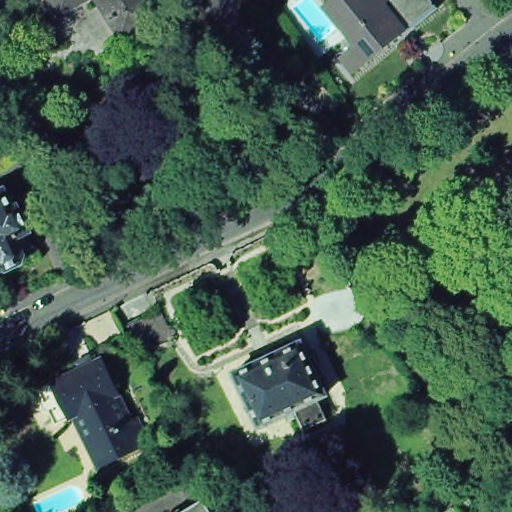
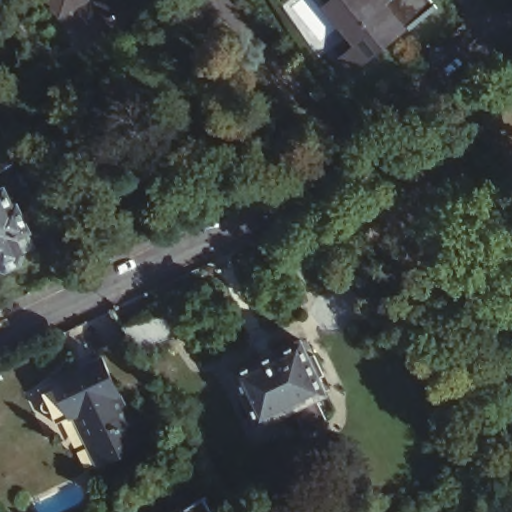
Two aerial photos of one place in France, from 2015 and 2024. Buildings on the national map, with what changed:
unchanged [(56,13),(48,0),(78,0),(56,13)]
unchanged [(106,18),(95,0),(144,0),(153,14),(130,28),(117,36),(106,18)]
unchanged [(166,6),(153,14),(144,0),(164,0),(166,6)]
unchanged [(326,1),(325,0),(328,0),(326,1)]
unchanged [(353,68),(352,66),(353,65),(342,51),(357,39),(328,0),(384,0),(404,24),(405,23),(407,24),(375,49),(353,68)]
unchanged [(3,135),(19,159),(7,167),(0,172),(0,138),(3,135)]
unchanged [(0,188),(10,207),(13,205),(25,230),(24,231),(31,246),(18,251),(20,254),(17,261),(2,268),(0,267),(0,188)]
unchanged [(120,328),(158,309),(172,338),(150,349),(152,355),(140,360),(125,336),(120,328)]
unchanged [(125,336),(140,360),(152,378),(117,396),(116,394),(117,394),(100,358),(96,350),(125,336)]
unchanged [(299,341),(307,357),(312,355),(322,375),(316,377),(324,394),(314,399),(323,418),(302,429),(292,409),(257,426),(232,373),(299,341)]
unchanged [(145,442),(140,444),(140,445),(133,449),(132,450),(120,456),(118,456),(97,466),(72,416),(54,424),(37,389),(77,369),(73,362),(88,354),(92,362),(100,358),(117,394),(116,394),(117,396),(130,421),(135,419),(145,442)]
unchanged [(202,450),(177,468),(160,444),(186,426),(202,450)]
unchanged [(229,491),(251,473),(260,485),(238,503),(229,491)]
unchanged [(203,501),(205,500),(212,512),(180,512),(202,498),(203,501)]
unchanged [(180,512),(172,512),(177,508),(180,512)]

